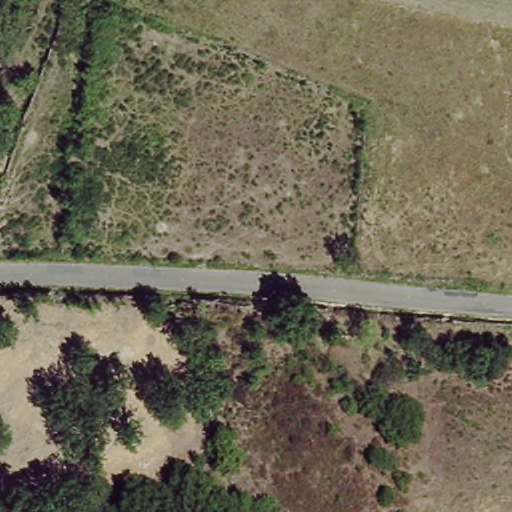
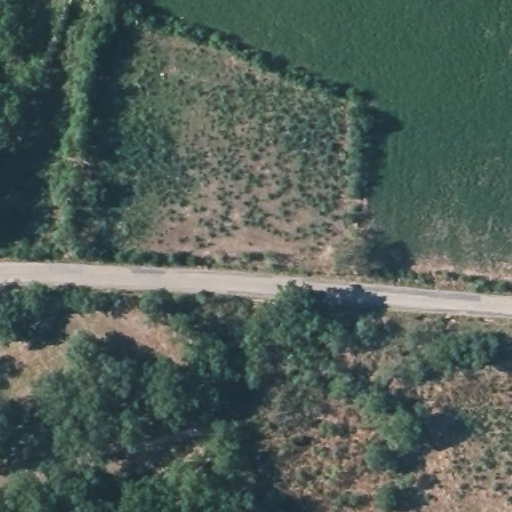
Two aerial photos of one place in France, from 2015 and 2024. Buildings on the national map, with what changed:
[]

